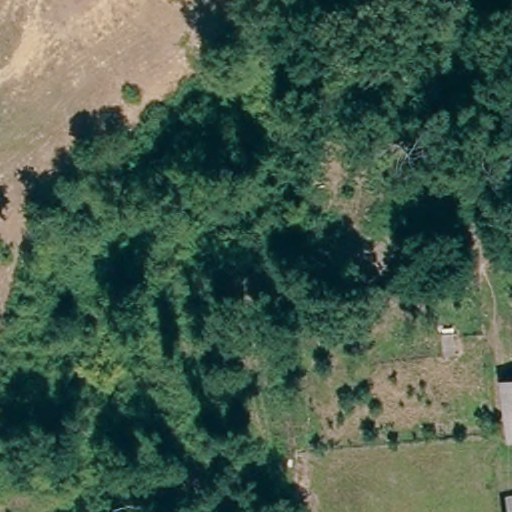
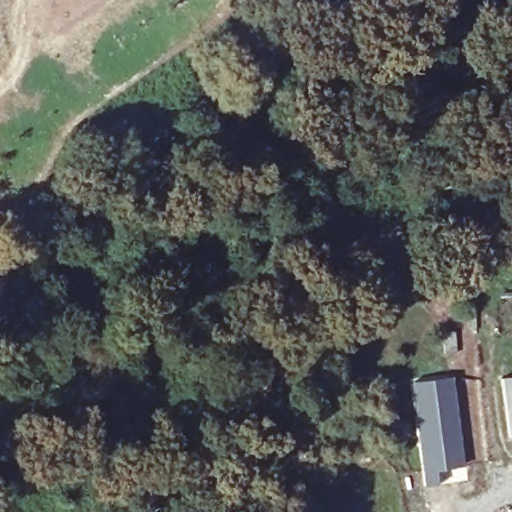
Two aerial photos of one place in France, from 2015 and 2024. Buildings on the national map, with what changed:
new [(442,468),(435,469),(437,483),(423,485),(409,381),(452,375),(462,464),(442,468)]
unchanged [(501,376),(512,375),(512,436),(507,436),(501,376)]

